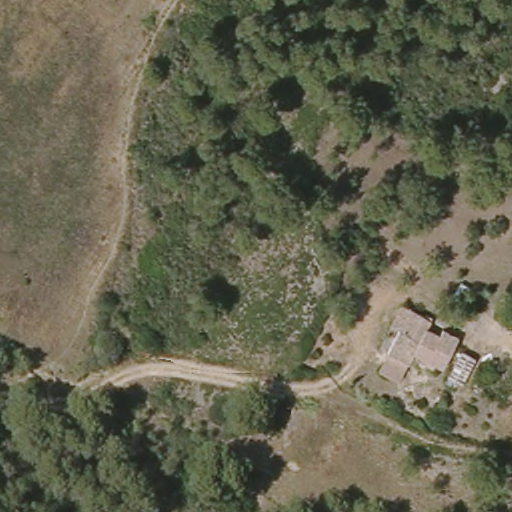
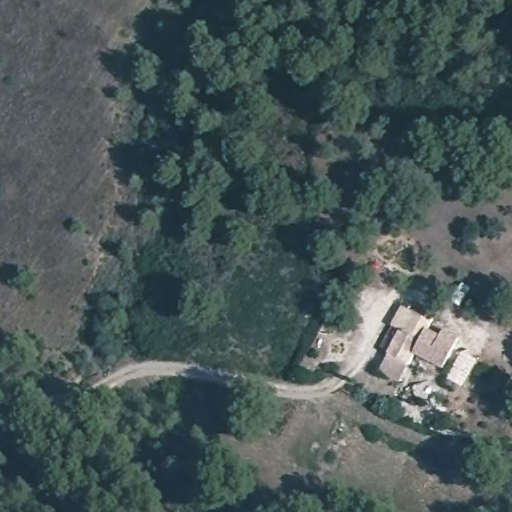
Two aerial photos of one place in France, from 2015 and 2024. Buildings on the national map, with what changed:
unchanged [(369,386),(377,370),(390,346),(386,345),(382,342),(393,322),(397,324),(421,337),(416,346),(430,353),(433,347),(448,355),(432,386),(404,371),(398,381),(391,396),(369,386)]
unchanged [(480,361),(463,389),(446,378),(462,348),(480,361)]

